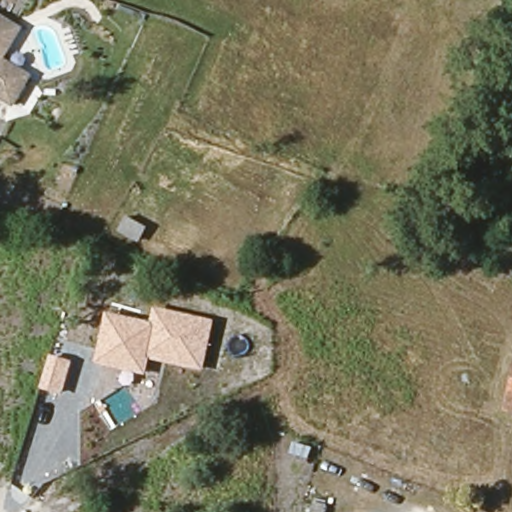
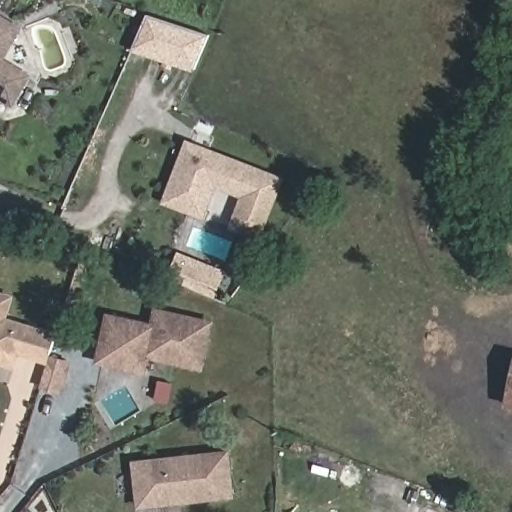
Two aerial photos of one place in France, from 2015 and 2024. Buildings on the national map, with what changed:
new [(190,72),(171,65),(132,49),(147,16),(185,29),(203,37),(190,72)]
unchanged [(3,55),(32,68),(18,100),(0,92),(3,87),(0,86),(0,18),(16,25),(3,55)]
new [(162,204),(187,140),(286,179),(262,242),(229,229),(240,198),(215,190),(204,220),(162,204)]
new [(217,300),(183,285),(168,278),(178,256),(193,262),(227,277),(217,300)]
new [(15,370),(0,365),(0,291),(14,296),(8,318),(57,333),(47,365),(20,356),(15,370)]
unchanged [(202,371),(148,360),(144,376),(95,365),(104,314),(150,322),(154,308),(215,321),(202,371)]
unchanged [(512,363),(512,410),(502,407),(512,363)]
new [(137,509),(131,462),(231,451),(237,500),(137,509)]
unchanged [(330,507),(329,512),(315,512),(316,505),(330,507)]

